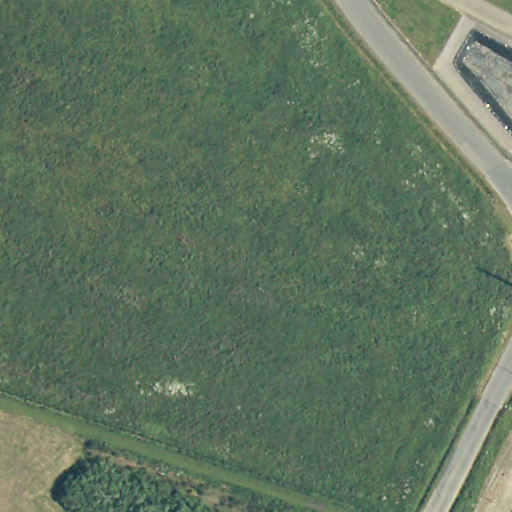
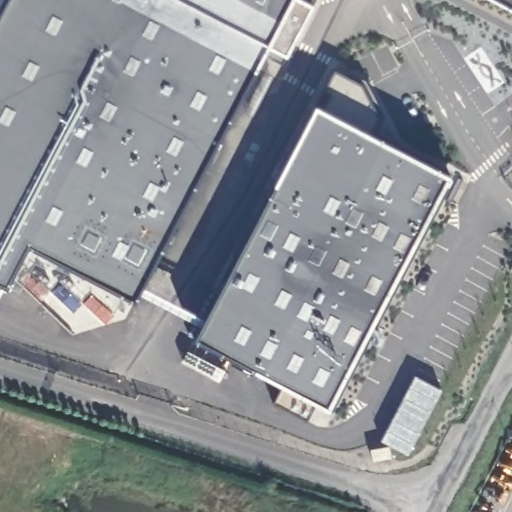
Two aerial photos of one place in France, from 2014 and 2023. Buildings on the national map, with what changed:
new [(313,4),(287,52),(283,62),(263,54),(135,297),(28,243),(6,286),(0,282),(0,9),(5,0),(315,0),(313,4)]
new [(324,90),(335,71),(362,83),(380,118),(371,132),(450,174),(329,408),(316,402),(307,419),(273,402),(282,383),(195,338),(317,106),(324,90)]

